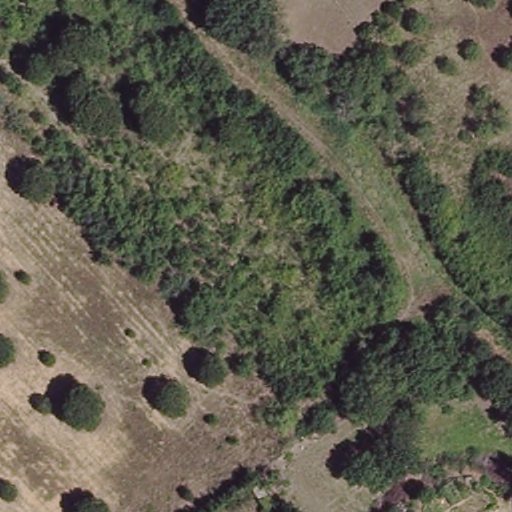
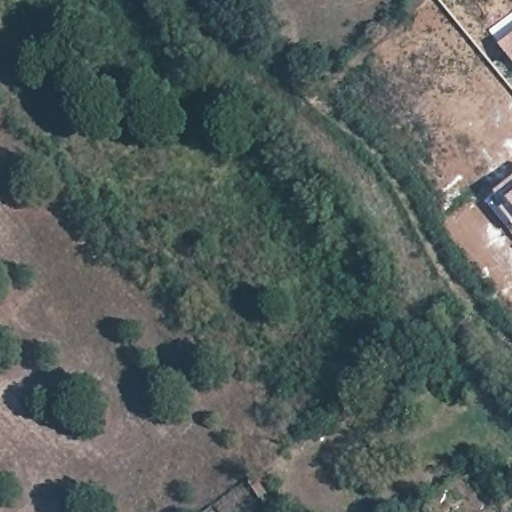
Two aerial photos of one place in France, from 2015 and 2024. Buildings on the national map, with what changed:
new [(512,33),(512,63),(498,44),(512,33)]
new [(511,178),(512,177),(512,233),(485,199),(511,178)]

